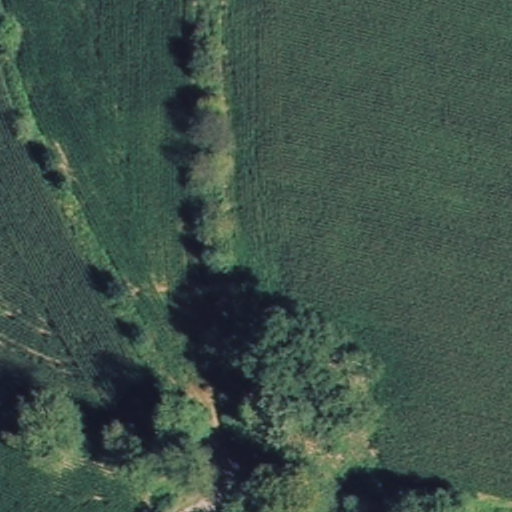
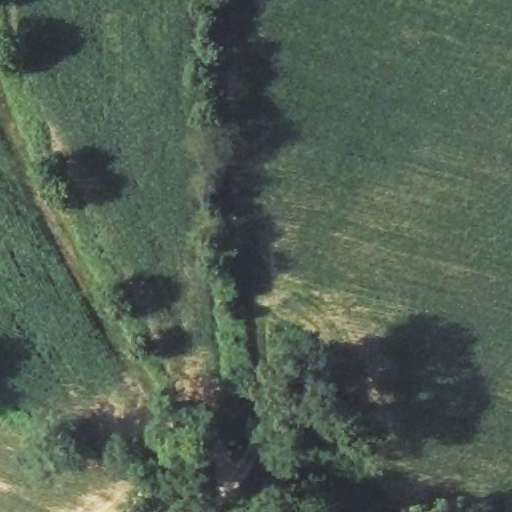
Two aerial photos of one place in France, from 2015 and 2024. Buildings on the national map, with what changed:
[]

